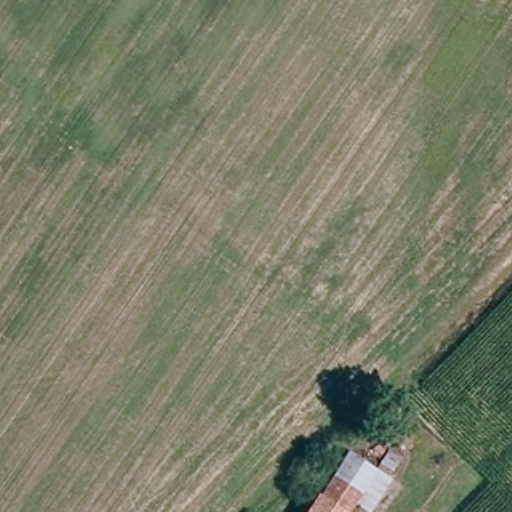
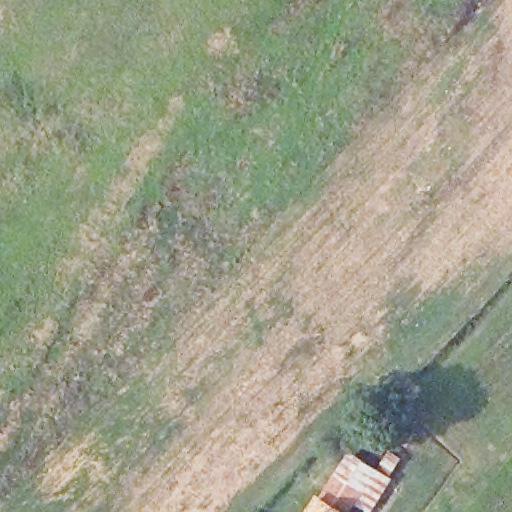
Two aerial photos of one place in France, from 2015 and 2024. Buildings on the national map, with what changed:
unchanged [(344,451),(383,476),(362,505),(349,495),(340,509),(338,512),(303,512),(344,451)]
unchanged [(340,509),(345,512),(338,512),(340,509)]

